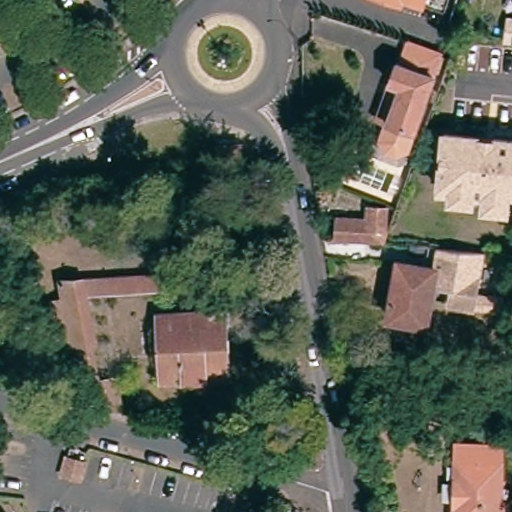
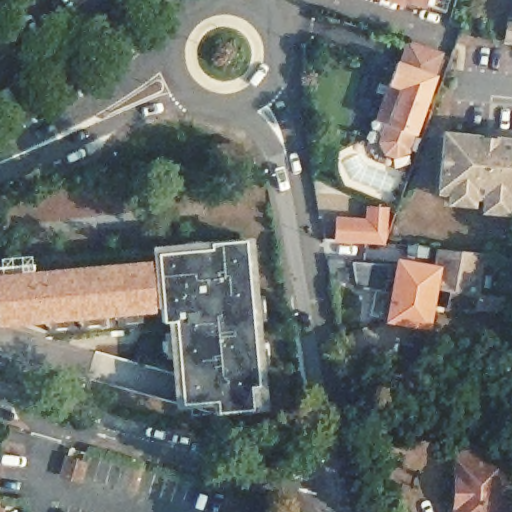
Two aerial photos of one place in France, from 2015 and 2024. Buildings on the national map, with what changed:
unchanged [(386,0),(440,0),(435,16),(386,0)]
unchanged [(507,14),(512,15),(512,42),(504,41),(507,14)]
unchanged [(388,88),(395,67),(398,68),(405,46),(438,57),(406,154),(396,160),(385,156),(380,146),(386,127),(376,124),(388,88)]
unchanged [(512,198),(511,198),(510,216),(480,213),(480,200),(476,199),(475,207),(445,205),(446,194),(435,192),(440,130),(512,137),(512,198)]
unchanged [(239,148),(239,157),(219,157),(219,149),(239,148)]
unchanged [(387,247),(338,245),(340,222),(368,225),(369,215),(389,216),(387,247)]
new [(266,408),(213,413),(213,406),(174,409),(167,321),(164,321),(162,307),(0,325),(0,264),(32,261),(32,268),(150,257),(150,244),(252,235),(266,408)]
unchanged [(393,257),(432,263),(435,247),(484,252),(480,292),(498,295),(495,305),(467,301),(470,282),(390,271),(393,257)]
unchanged [(418,333),(381,327),(390,271),(470,282),(467,301),(495,305),(493,318),(464,317),(440,313),(443,297),(424,295),(418,333)]
demolished [(71,375),(78,372),(71,343),(61,296),(58,280),(159,272),(160,286),(86,292),(97,341),(92,342),(99,378),(116,377),(123,411),(75,397),(71,375)]
demolished [(165,328),(165,315),(226,312),(229,377),(216,378),(216,389),(203,390),(203,378),(168,381),(166,360),(165,328)]
unchanged [(84,480),(65,475),(73,449),(91,454),(84,480)]
unchanged [(500,491),(510,491),(509,512),(460,512),(463,449),(502,452),(500,491)]

